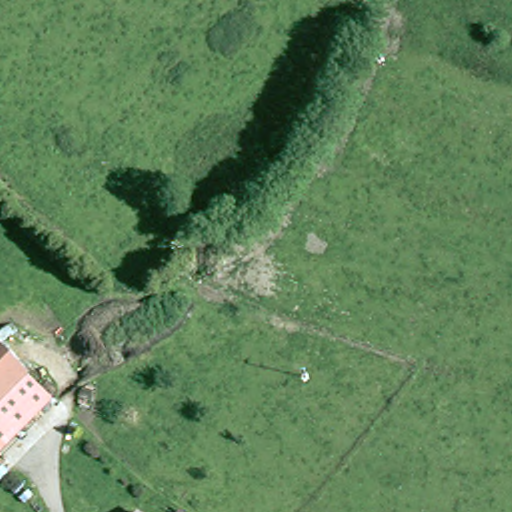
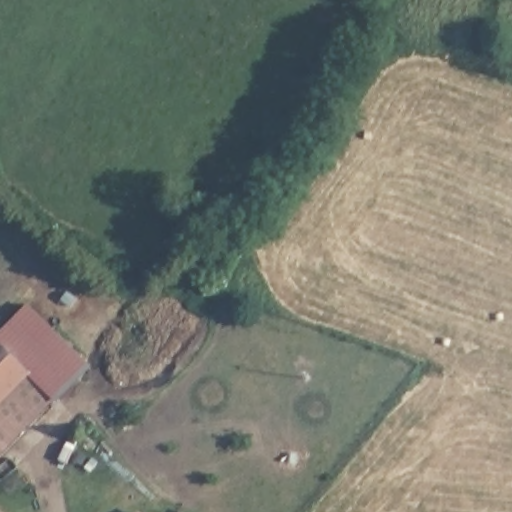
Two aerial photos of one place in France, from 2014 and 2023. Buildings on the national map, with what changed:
new [(17,378),(27,371),(0,347),(0,327),(27,302),(90,364),(54,397),(35,378),(22,388),(3,410),(0,420),(0,398),(17,378)]
unchanged [(17,378),(0,398),(0,347),(27,371),(17,378)]
unchanged [(0,460),(0,420),(3,410),(22,388),(35,378),(54,397),(0,460)]

